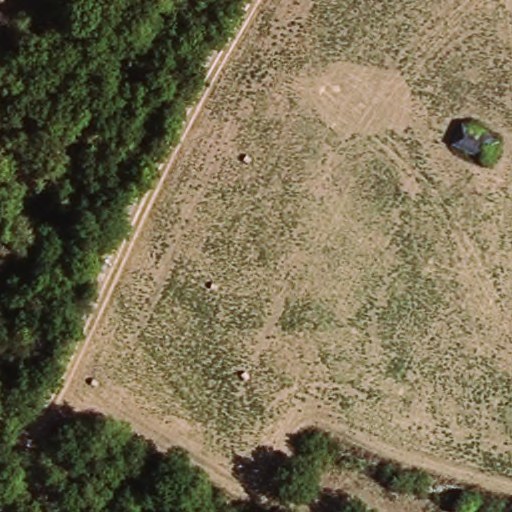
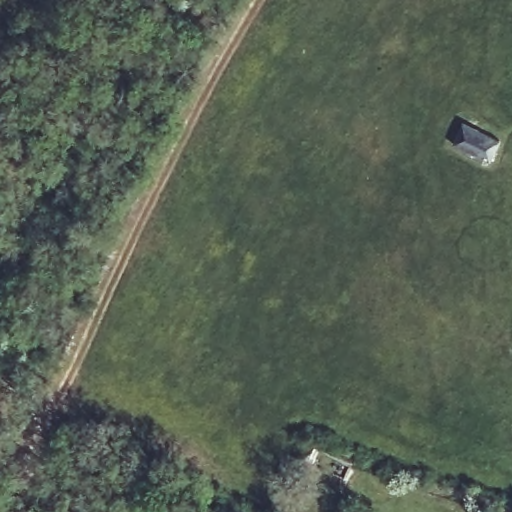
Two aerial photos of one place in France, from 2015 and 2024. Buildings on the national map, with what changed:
unchanged [(497,142),(485,159),(450,138),(462,119),(497,142)]
unchanged [(39,503),(34,512),(22,512),(20,510),(27,497),(39,503)]

